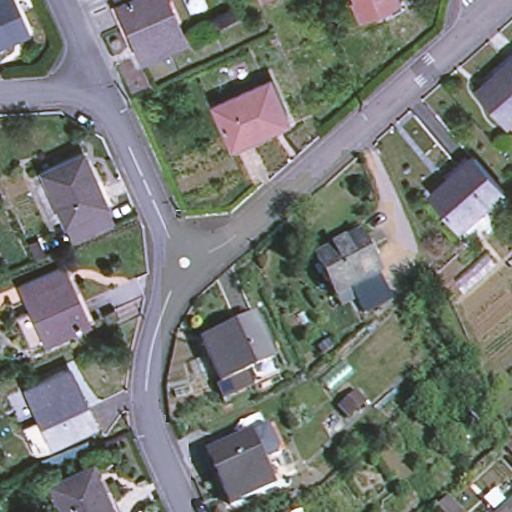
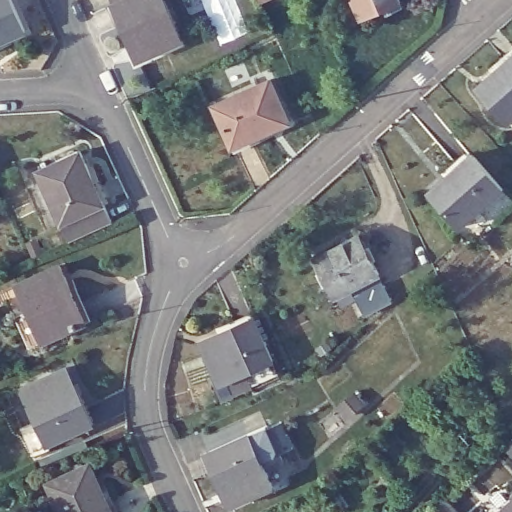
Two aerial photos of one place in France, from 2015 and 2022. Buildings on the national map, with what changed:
unchanged [(28,31),(0,43),(0,0),(14,0),(28,31)]
unchanged [(163,0),(121,19),(113,0),(165,0),(163,0)]
unchanged [(146,74),(121,19),(163,0),(188,55),(146,74)]
unchanged [(385,12),(366,20),(359,23),(349,1),(352,0),(399,0),(402,5),(404,11),(388,18),(385,12)]
unchanged [(478,89),(512,59),(512,120),(509,123),(478,89)]
unchanged [(289,122),(233,148),(214,106),(270,80),(289,122)]
unchanged [(66,232),(58,214),(34,161),(76,142),(100,194),(109,212),(66,232)]
unchanged [(503,190),(461,226),(431,192),(473,155),(503,190)]
unchanged [(369,313),(355,288),(339,298),(316,259),(360,235),(396,298),(369,313)]
unchanged [(33,347),(18,315),(30,309),(20,285),(63,266),(88,322),(33,347)]
unchanged [(255,385),(249,372),(223,383),(204,341),(255,317),(275,360),(281,373),(255,385)]
unchanged [(33,449),(23,426),(38,418),(24,387),(67,367),(93,422),(33,449)]
unchanged [(228,507),(206,454),(246,436),(265,428),(278,456),(259,464),(269,489),(228,507)]
unchanged [(49,481),(93,461),(115,512),(62,512),(63,511),(49,481)]
unchanged [(438,512),(449,503),(456,512),(438,512)]

